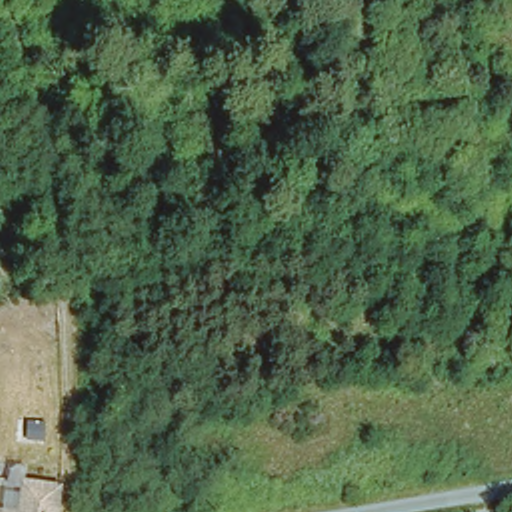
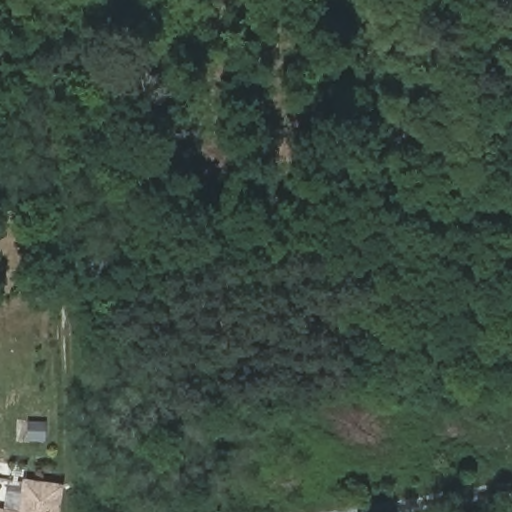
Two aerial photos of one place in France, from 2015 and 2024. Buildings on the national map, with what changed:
unchanged [(16,478),(51,481),(51,512),(0,512),(0,507),(15,509),(16,478)]

